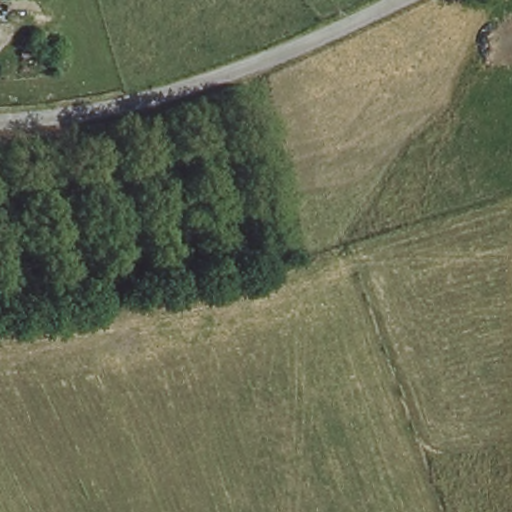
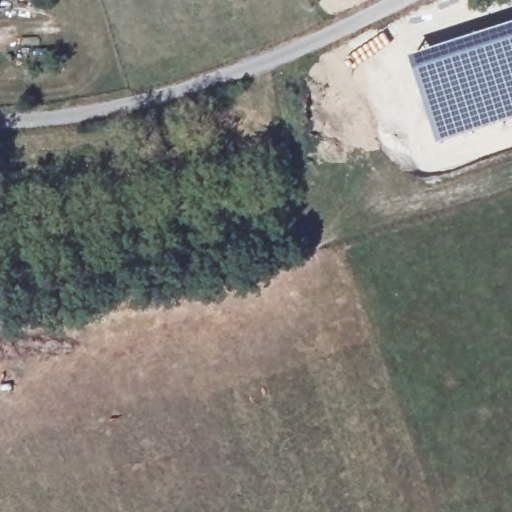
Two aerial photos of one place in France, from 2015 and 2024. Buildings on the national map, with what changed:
new [(512,121),(465,136),(435,145),(406,56),(512,22),(512,121)]

